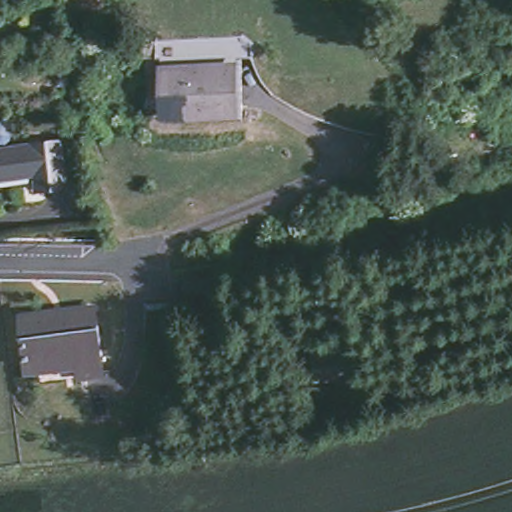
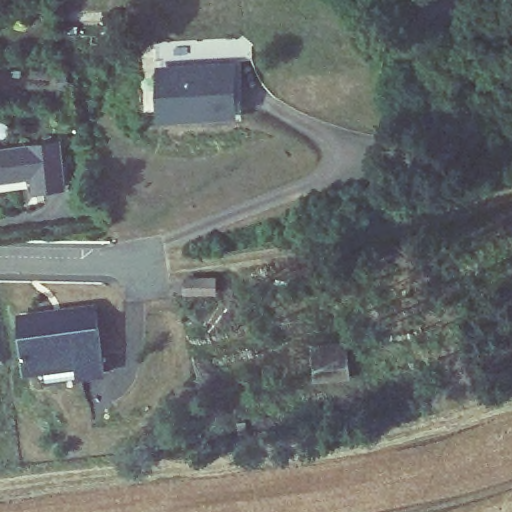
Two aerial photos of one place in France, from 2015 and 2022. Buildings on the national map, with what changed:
unchanged [(232,63),(231,107),(158,106),(157,62),(232,63)]
unchanged [(65,137),(70,184),(38,188),(36,172),(0,175),(0,143),(65,137)]
unchanged [(221,280),(221,294),(191,294),(190,280),(221,280)]
unchanged [(47,317),(47,321),(72,320),(73,315),(93,315),(95,369),(25,371),(24,318),(47,317)]

